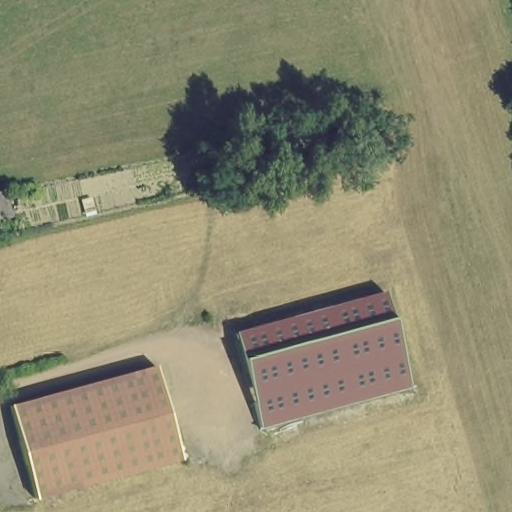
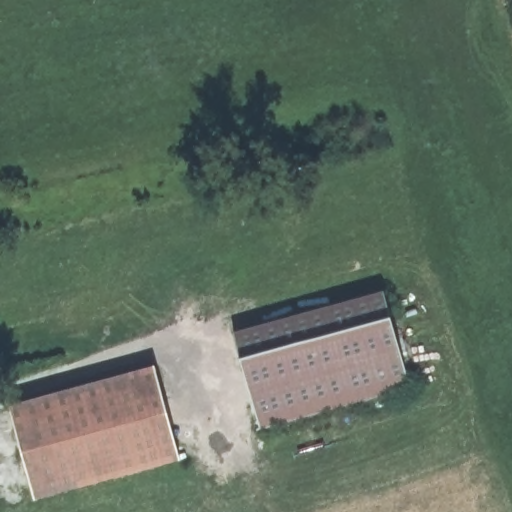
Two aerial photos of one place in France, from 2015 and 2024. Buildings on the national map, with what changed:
unchanged [(251,405),(245,382),(238,360),(233,338),(230,327),(380,287),(382,296),(388,316),(394,337),(400,360),(406,383),(256,424),(251,405)]
unchanged [(32,497),(26,477),(19,454),(13,431),(7,407),(6,405),(152,365),(152,366),(158,388),(164,411),(170,434),(177,458),(32,497)]

